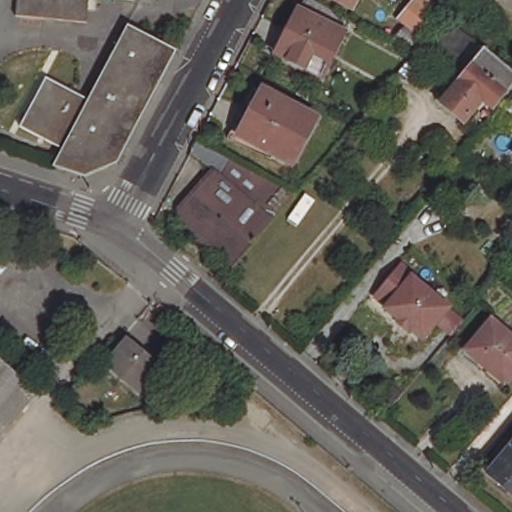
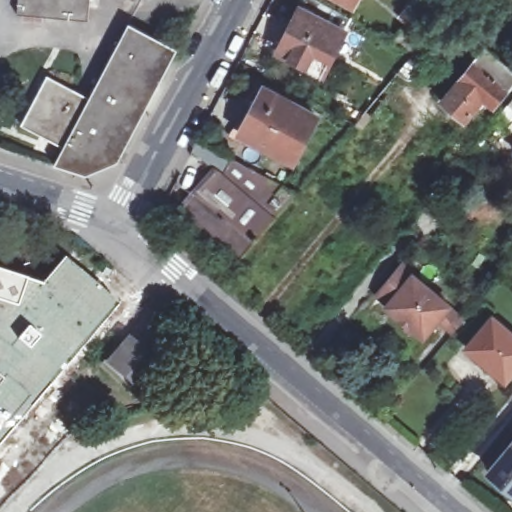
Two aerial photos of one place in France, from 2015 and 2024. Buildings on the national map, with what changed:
unchanged [(20,13),(21,0),(93,0),(90,20),(20,13)]
unchanged [(296,14),(303,0),(349,23),(321,81),(274,57),(296,14)]
unchanged [(342,0),(360,0),(356,7),(342,0)]
unchanged [(417,46),(394,26),(417,0),(418,0),(440,20),(417,46)]
unchanged [(87,175),(55,165),(64,148),(90,98),(130,24),(178,49),(161,82),(145,113),(119,161),(110,165),(87,175)]
unchanged [(469,47),(448,73),(446,71),(434,83),(429,78),(413,97),(394,80),(412,59),(424,44),(441,24),(469,47)]
unchanged [(512,89),(497,107),(487,98),(468,121),(442,99),(488,46),(512,66),(512,89)]
unchanged [(64,148),(24,125),(50,76),(90,98),(64,148)]
unchanged [(241,133),(265,89),(296,105),(320,117),(298,162),(272,150),(241,133)]
unchanged [(512,101),(512,127),(499,116),(512,101)]
unchanged [(198,140),(233,158),(234,156),(278,180),(298,191),(280,213),(279,214),(274,220),(246,253),(234,267),(181,222),(179,207),(184,201),(191,194),(201,182),(208,174),(214,167),(220,172),(224,167),(193,150),(198,140)]
new [(40,281),(63,255),(119,302),(61,369),(0,442),(0,269),(40,281)]
unchanged [(462,324),(453,335),(438,322),(424,337),(389,307),(390,305),(379,295),(404,264),(417,275),(415,277),(450,306),(466,319),(462,324)]
unchanged [(512,378),(489,359),(486,364),(465,346),(494,312),(512,328),(512,378)]
unchanged [(128,339),(141,349),(148,355),(158,363),(162,367),(141,391),(108,362),(128,339)]
demolished [(22,374),(36,386),(5,423),(0,429),(0,355),(22,374)]
unchanged [(512,446),(512,490),(490,472),(512,446)]

